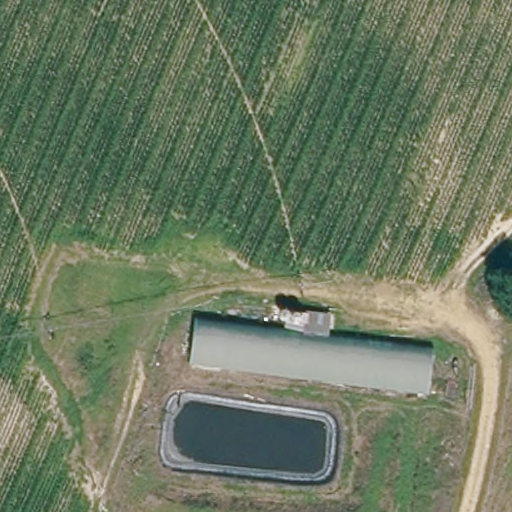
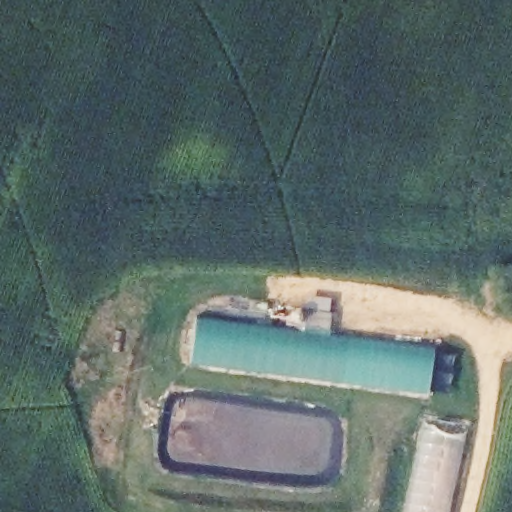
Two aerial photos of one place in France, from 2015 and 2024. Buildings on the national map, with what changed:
unchanged [(282,323),(284,307),(321,314),(319,326),(439,342),(430,394),(190,361),(193,316),(282,323)]
new [(454,474),(445,512),(407,512),(426,422),(442,425),(442,422),(463,427),(449,458),(446,472),(454,474)]

